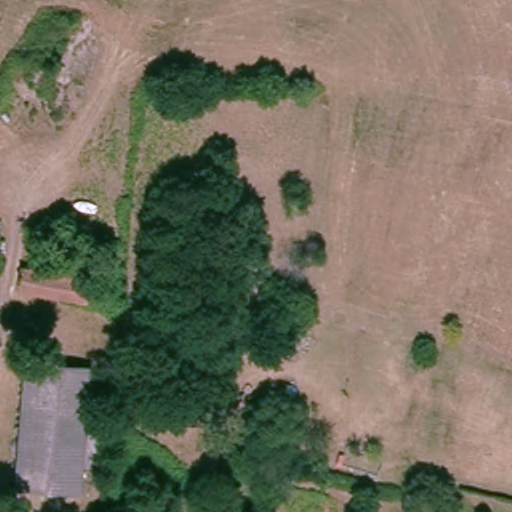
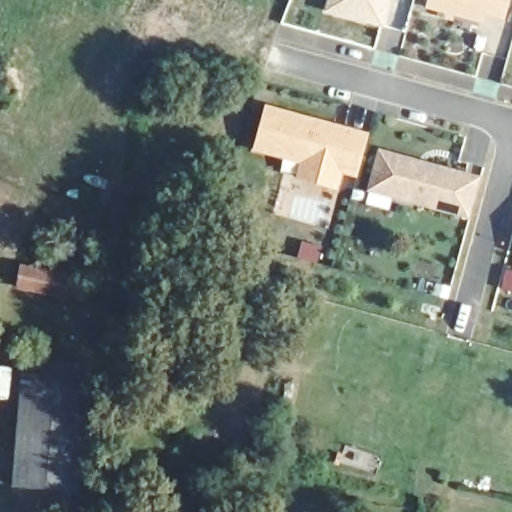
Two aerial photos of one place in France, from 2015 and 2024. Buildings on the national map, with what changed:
new [(329,0),(392,0),(384,29),(325,12),(329,0)]
new [(428,0),(510,0),(505,19),(484,14),(482,23),(425,9),(428,0)]
new [(297,179),(300,164),(252,152),(266,105),(368,133),(356,178),(341,174),(337,190),(297,179)]
new [(378,149),(479,177),(468,218),(367,192),(378,149)]
unchanged [(81,299),(16,289),(19,268),(84,280),(81,299)]
unchanged [(75,491),(12,485),(22,357),(86,362),(75,491)]

